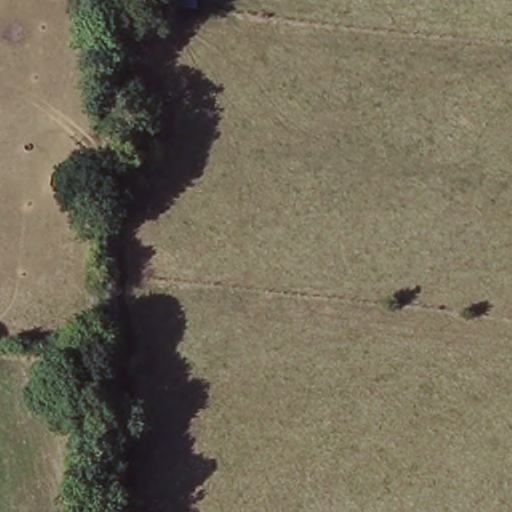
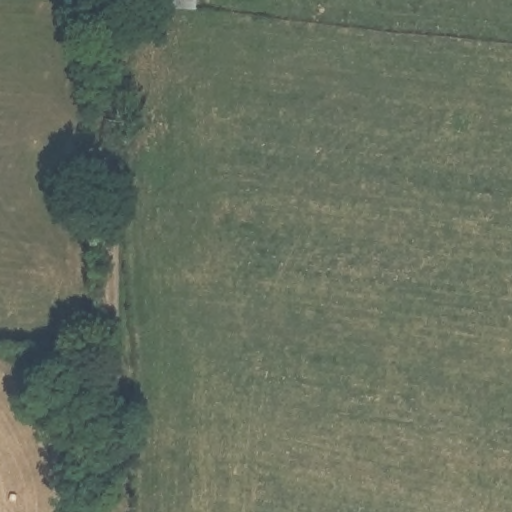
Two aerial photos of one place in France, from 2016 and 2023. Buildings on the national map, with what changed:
unchanged [(174,15),(174,0),(201,0),(200,17),(174,15)]

